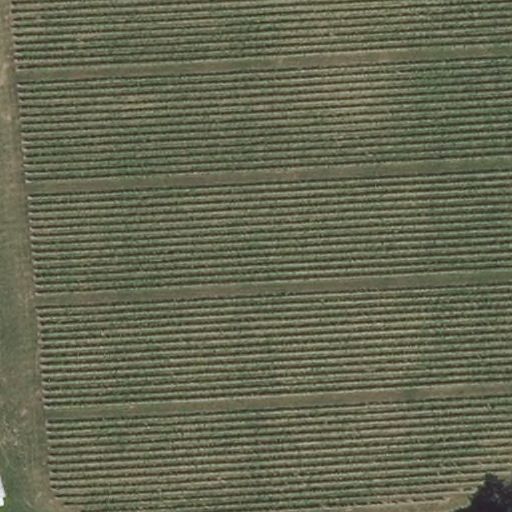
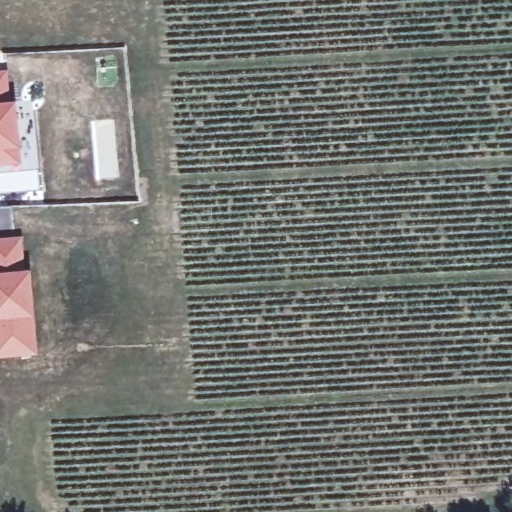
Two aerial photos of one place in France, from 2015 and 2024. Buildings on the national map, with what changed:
new [(10,98),(0,99),(0,69),(8,68),(10,98)]
new [(16,100),(22,163),(0,165),(0,99),(10,98),(16,100)]
new [(25,266),(0,268),(0,236),(22,235),(25,266)]
new [(30,265),(38,354),(0,358),(0,268),(25,266),(30,265)]

